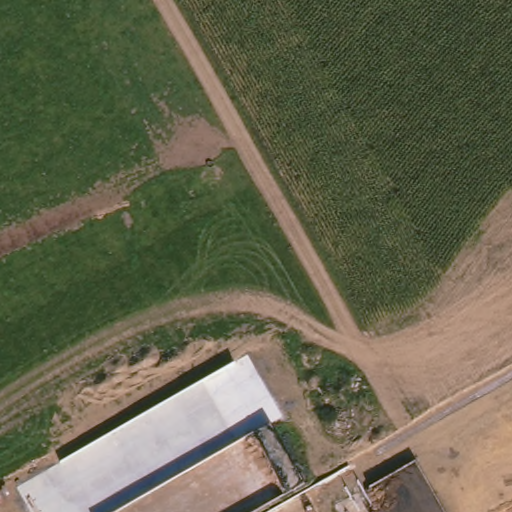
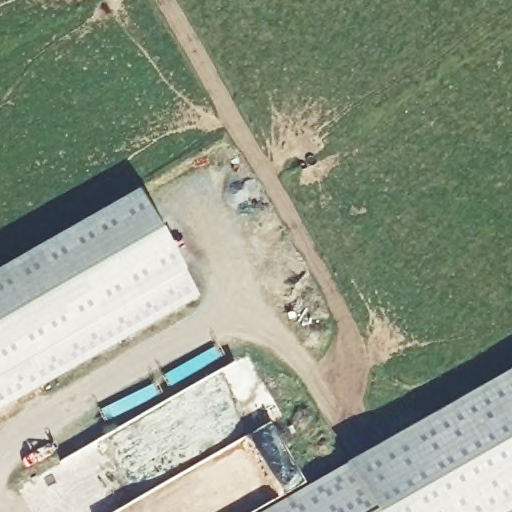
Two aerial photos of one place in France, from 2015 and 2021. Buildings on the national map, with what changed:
new [(200,297),(0,410),(0,270),(139,191),(184,271),(200,297)]
new [(512,371),(512,512),(267,512),(512,371)]

